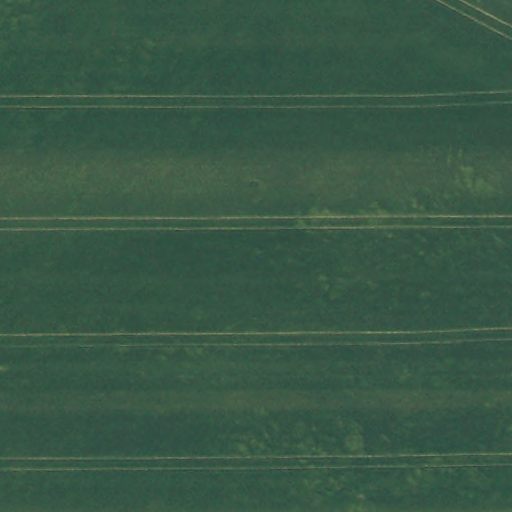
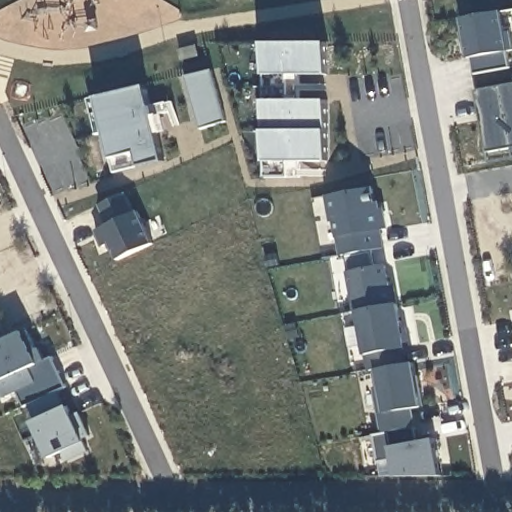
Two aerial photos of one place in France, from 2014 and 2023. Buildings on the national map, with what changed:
new [(505,34),(511,33),(512,40),(512,50),(469,58),(466,45),(462,46),(460,36),(464,35),(461,19),(502,11),(505,34)]
new [(327,75),(300,75),(299,100),(327,101),(328,162),(299,161),(298,178),(265,177),(263,162),(264,131),(263,101),(264,75),(263,42),(328,42),(327,75)]
new [(509,69),(474,74),(469,58),(507,51),(509,69)]
new [(225,122),(201,129),(187,77),(211,71),(225,122)]
new [(474,91),(512,84),(512,148),(485,152),(474,91)]
new [(164,161),(140,167),(117,174),(112,159),(105,134),(98,136),(90,100),(97,98),(146,87),(164,161)]
new [(374,205),(381,204),(387,231),(380,232),(384,250),(321,261),(308,196),(372,185),(374,205)]
new [(110,244),(103,247),(95,232),(107,227),(99,206),(126,195),(135,214),(139,212),(154,245),(118,262),(110,244)]
new [(368,371),(366,357),(357,311),(354,311),(348,272),(387,265),(391,287),(394,287),(399,305),(408,350),(402,349),(405,365),(375,370),(368,371)]
new [(28,406),(24,407),(17,393),(5,399),(0,390),(0,342),(23,332),(28,332),(36,351),(40,350),(45,361),(52,358),(65,388),(64,389),(58,392),(28,406)]
new [(372,387),(379,386),(375,370),(413,363),(421,407),(412,410),(415,427),(380,433),(372,387)]
new [(58,392),(67,407),(72,417),(79,413),(90,436),(84,440),(88,452),(66,462),(63,452),(48,458),(31,423),(38,420),(28,406),(58,392)]
new [(417,442),(435,440),(441,477),(394,476),(391,460),(378,462),(372,435),(380,433),(415,427),(417,442)]

